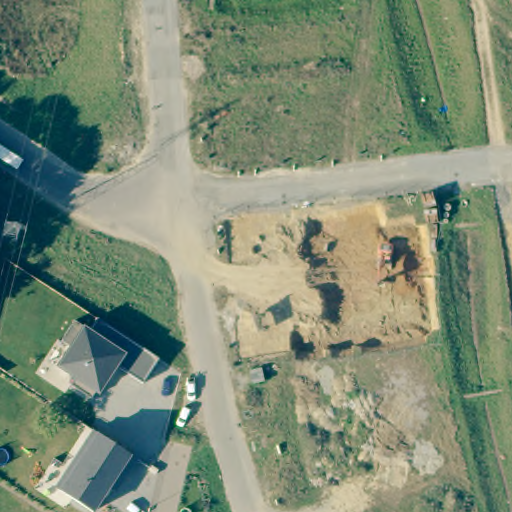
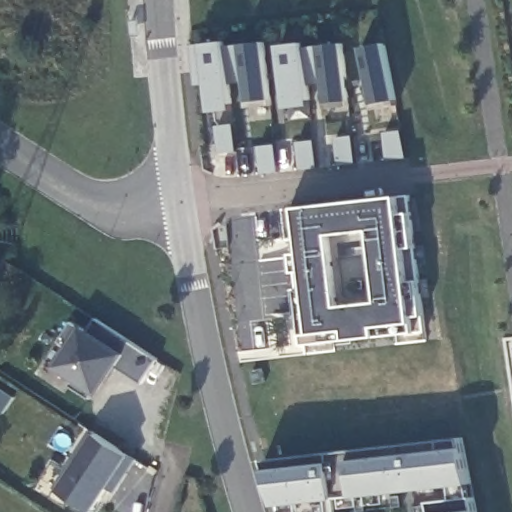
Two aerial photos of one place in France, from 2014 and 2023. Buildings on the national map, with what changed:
new [(203,43),(225,40),(226,46),(264,42),(271,104),(248,106),(245,83),(230,85),(233,109),(211,112),(207,84),(197,85),(191,45),(203,43)]
new [(305,41),(306,47),(343,43),(349,104),(327,106),(324,84),(308,85),(310,106),(286,108),(278,45),(305,41)]
new [(385,42),(397,104),(375,108),(362,46),(385,42)]
new [(299,207),(400,196),(410,195),(411,211),(415,249),(419,281),(423,317),(424,332),(416,333),(378,337),(349,340),(305,344),(289,208),(299,207)]
unchanged [(70,385),(75,377),(56,365),(68,345),(61,340),(73,320),(82,325),(89,331),(95,320),(157,359),(142,383),(117,366),(99,396),(93,392),(89,398),(70,385)]
unchanged [(57,489),(95,432),(132,458),(112,491),(108,488),(93,512),(57,489)]
new [(462,438),(464,447),(471,483),(476,510),(476,512),(432,512),(429,501),(455,499),(452,485),(355,496),(335,498),(300,502),(301,512),(286,512),(285,504),(278,504),(269,469),(266,459),(462,438)]

